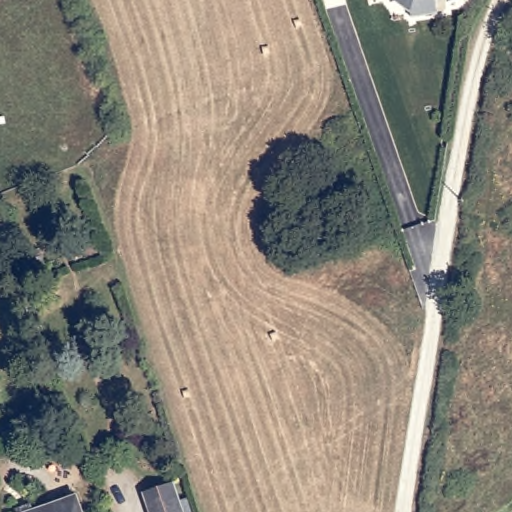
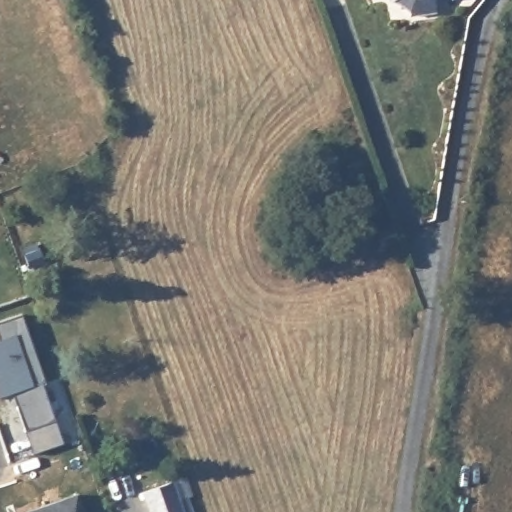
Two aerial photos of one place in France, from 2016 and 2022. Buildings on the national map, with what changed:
unchanged [(394,0),(405,0),(397,4),(394,0)]
unchanged [(445,11),(414,16),(413,8),(421,4),(417,0),(442,0),(444,4),(445,11)]
new [(0,398),(0,321),(21,314),(45,383),(41,385),(64,445),(33,455),(9,395),(0,398)]
unchanged [(145,494),(172,485),(181,512),(152,512),(145,494)]
unchanged [(77,500),(82,512),(45,512),(77,500)]

